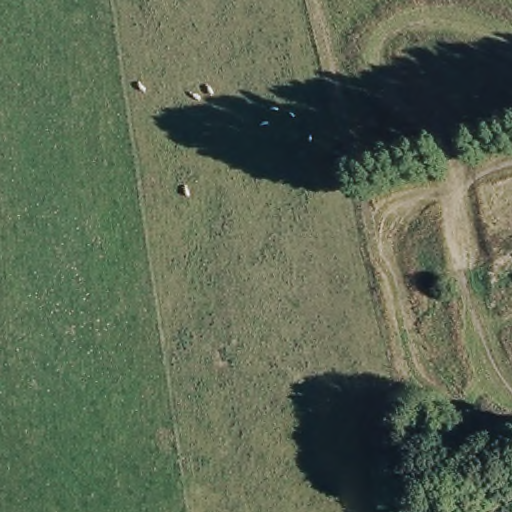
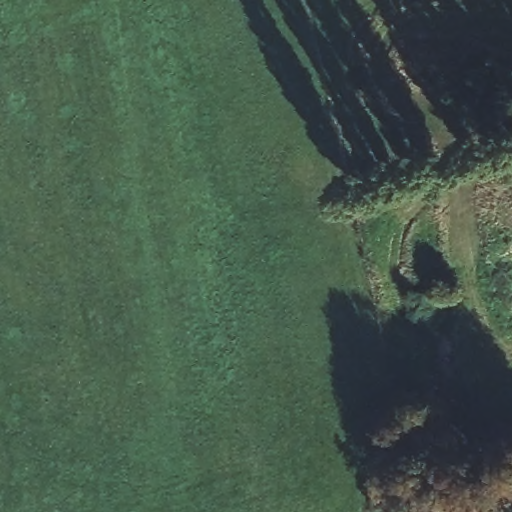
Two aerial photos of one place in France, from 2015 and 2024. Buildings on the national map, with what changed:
[]

